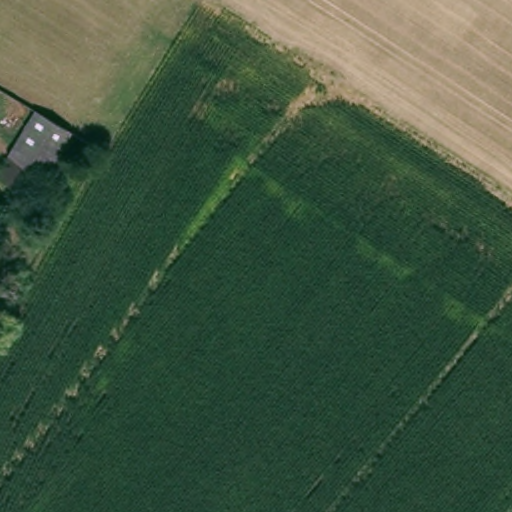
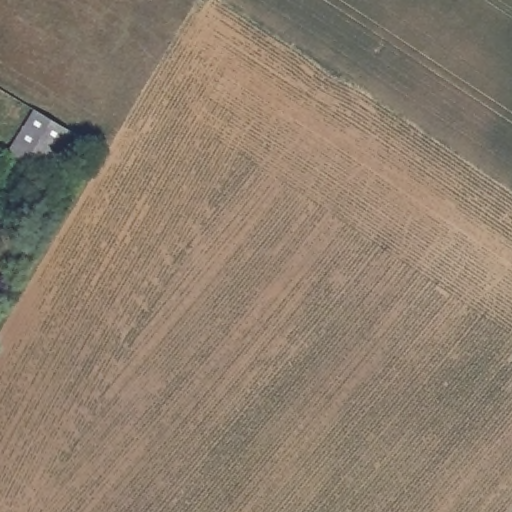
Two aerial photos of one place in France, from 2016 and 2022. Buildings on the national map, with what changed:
unchanged [(35,110),(72,132),(31,196),(0,177),(0,168),(35,110)]

